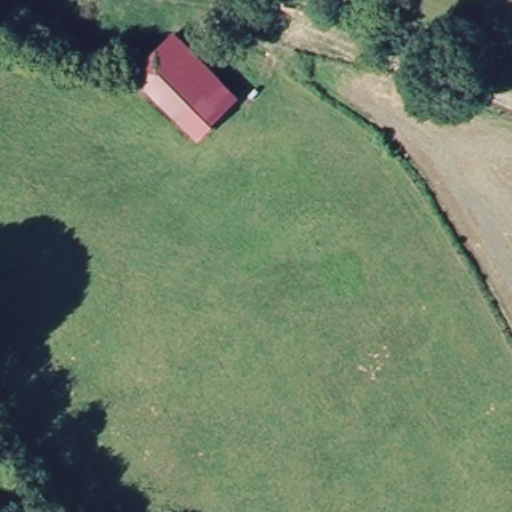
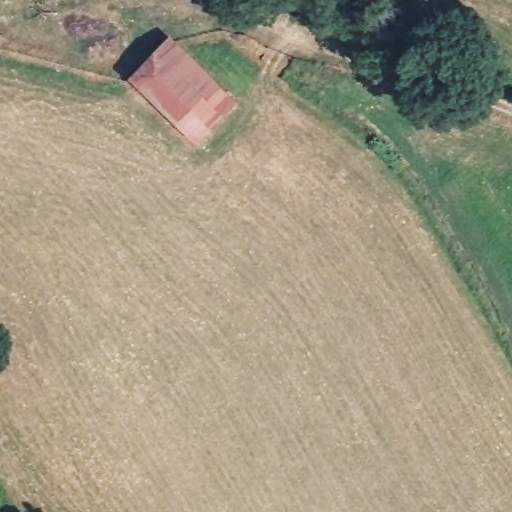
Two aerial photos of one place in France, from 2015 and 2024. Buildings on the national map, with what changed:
unchanged [(199,143),(132,81),(171,45),(239,106),(199,143)]

